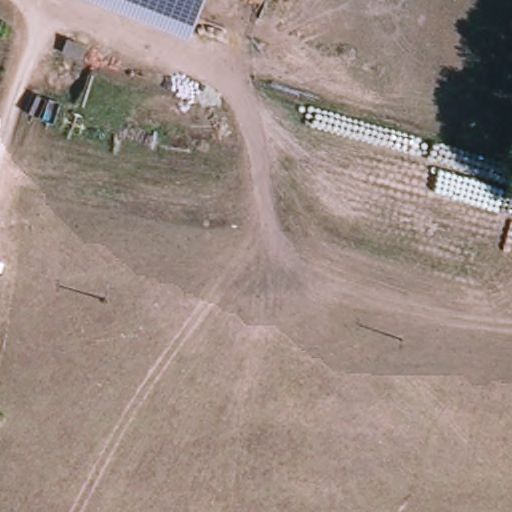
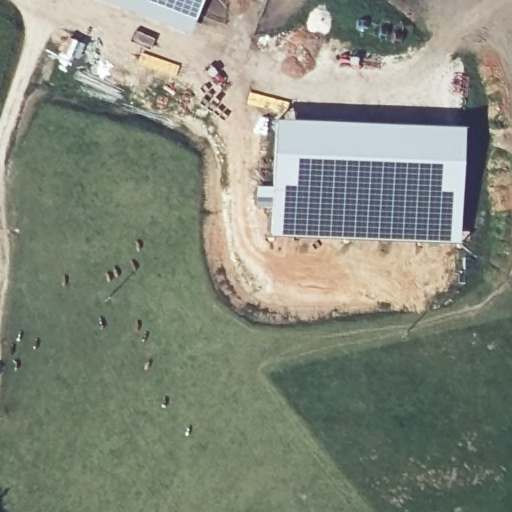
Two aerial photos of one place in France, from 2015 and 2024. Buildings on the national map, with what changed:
unchanged [(114,0),(204,0),(192,31),(114,0)]
new [(275,122),(462,132),(458,245),(270,237),(275,122)]

